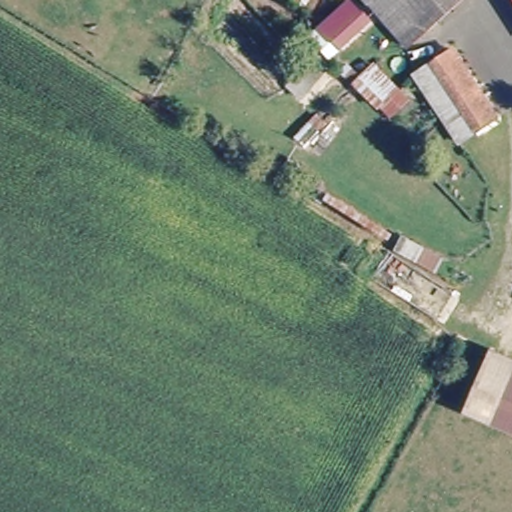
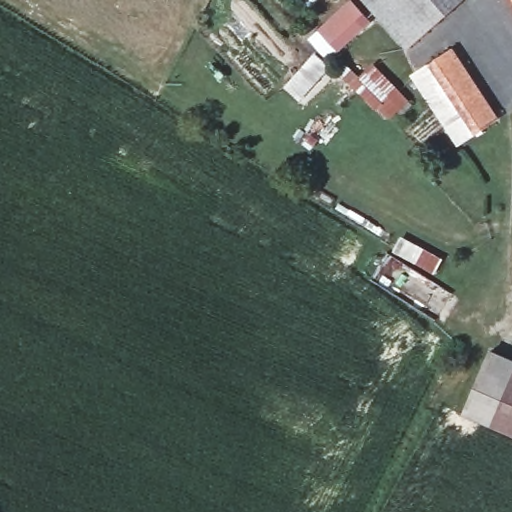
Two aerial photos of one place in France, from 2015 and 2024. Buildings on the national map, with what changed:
unchanged [(356,0),(372,20),(347,41),(331,52),(317,38),(320,32),(327,23),(356,0)]
unchanged [(367,0),(401,0),(420,0),(439,0),(455,0),(477,0),(454,19),(422,46),(415,52),(407,44),(367,0)]
unchanged [(472,132),(429,72),(448,57),(492,115),(480,127),(472,132)]
unchanged [(377,65),(413,106),(387,126),(351,87),(377,65)]
unchanged [(455,142),(412,84),(429,72),(472,132),(455,142)]
unchanged [(492,355),(512,363),(512,381),(490,430),(462,418),(492,355)]
unchanged [(512,439),(490,430),(512,381),(512,439)]

